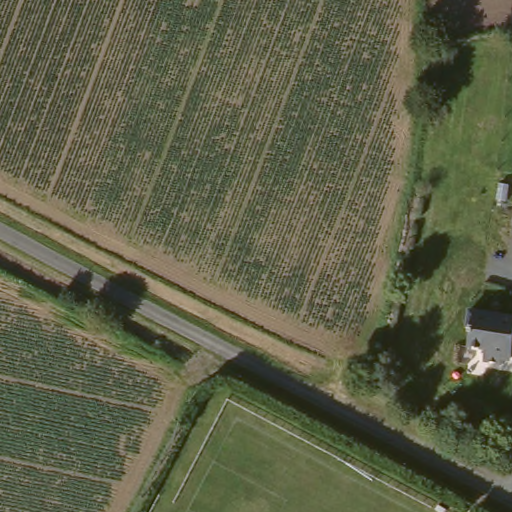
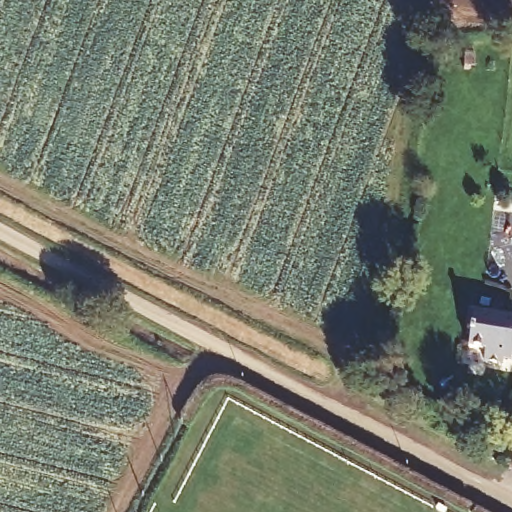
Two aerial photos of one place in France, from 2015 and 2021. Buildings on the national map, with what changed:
unchanged [(509,357),(508,364),(489,362),(490,351),(473,348),(476,330),(471,329),(473,311),(512,316),(512,357),(509,357)]

